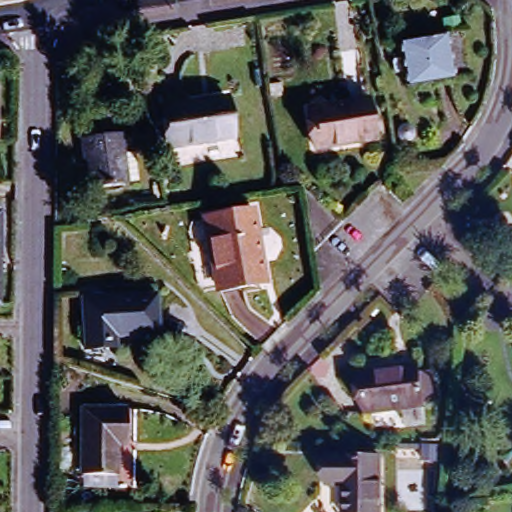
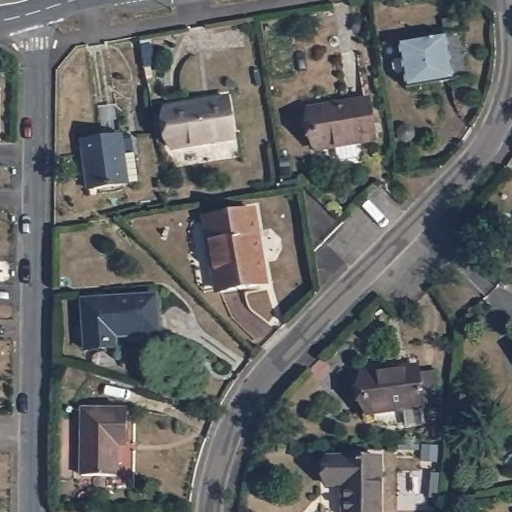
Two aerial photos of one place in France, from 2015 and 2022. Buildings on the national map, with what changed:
unchanged [(450,84),(407,90),(399,47),(443,39),(450,84)]
unchanged [(230,138),(170,148),(164,106),(222,97),(230,138)]
unchanged [(370,142),(312,152),(307,114),(327,110),(327,112),(342,109),(342,107),(364,104),(370,142)]
unchanged [(77,144),(119,138),(122,158),(132,157),(137,185),(125,187),(85,193),(77,144)]
unchanged [(262,279),(215,287),(207,243),(205,244),(200,219),(250,211),(262,279)]
unchanged [(105,354),(82,356),(78,306),(153,298),(157,337),(115,342),(115,353),(105,354)]
unchanged [(427,374),(430,401),(414,403),(415,409),(357,415),(352,373),(410,368),(411,376),(427,374)]
unchanged [(124,447),(113,448),(114,480),(79,479),(80,413),(125,413),(124,447)]
unchanged [(382,512),(345,512),(345,490),(329,490),(329,463),(382,462),(382,512)]

